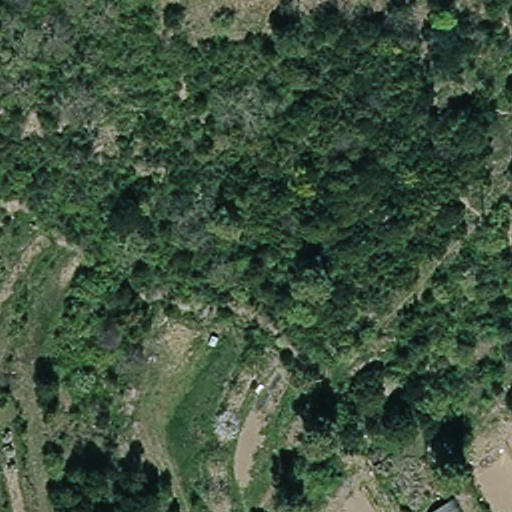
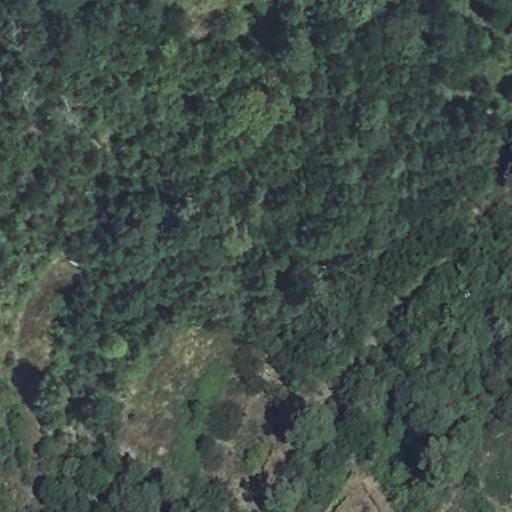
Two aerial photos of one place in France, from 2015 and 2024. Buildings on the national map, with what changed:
unchanged [(464,512),(428,512),(428,510),(458,499),(464,512)]

